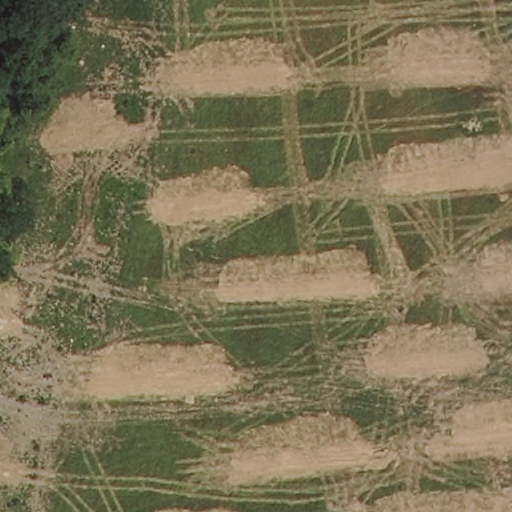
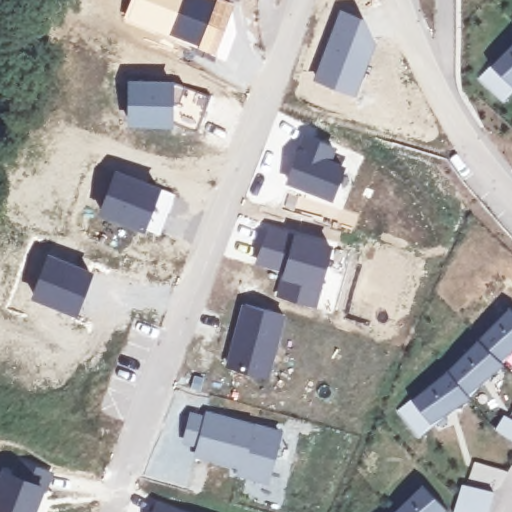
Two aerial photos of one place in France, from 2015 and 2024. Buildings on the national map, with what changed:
new [(215,0),(198,47),(123,20),(130,0),(215,0)]
new [(234,0),(215,54),(198,47),(215,0),(234,0)]
new [(339,7),(364,16),(377,40),(358,96),(314,80),(339,7)]
new [(502,101),(479,78),(494,64),(512,46),(512,88),(502,101)]
new [(177,80),(173,127),(128,127),(128,78),(177,80)]
new [(301,130),(339,145),(334,158),(344,162),(331,200),(284,182),(301,130)]
new [(160,235),(144,230),(98,214),(115,168),(159,185),(176,192),(160,235)]
new [(266,222),(331,240),(316,307),(274,296),(281,271),(255,263),(266,222)]
new [(48,252),(93,270),(76,315),(30,298),(48,252)]
new [(241,301),(288,314),(269,379),(226,366),(241,301)]
new [(499,360),(504,366),(466,393),(472,400),(430,424),(419,436),(398,410),(415,398),(447,373),(511,307),(512,308),(512,350),(499,360)]
new [(189,408),(204,411),(205,408),(284,428),(269,485),(233,475),(234,469),(192,457),(194,446),(181,444),(189,408)]
new [(504,416),(512,420),(512,438),(497,428),(504,416)]
new [(29,476),(34,465),(53,472),(36,512),(0,512),(0,472),(3,465),(29,476)]
new [(446,512),(397,512),(425,485),(449,510),(446,512)]
new [(464,487),(496,495),(491,512),(457,512),(464,487)]
new [(154,498),(190,512),(150,512),(154,498)]

